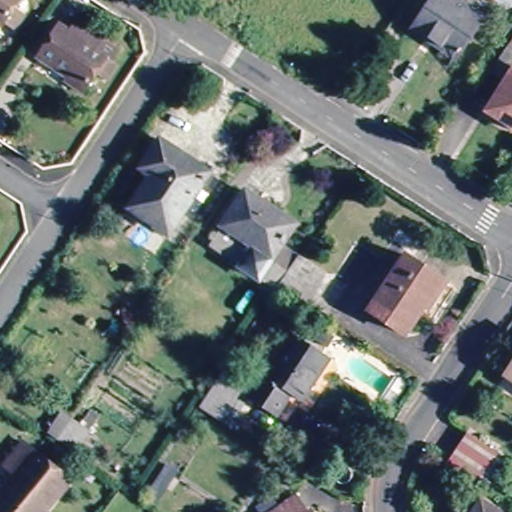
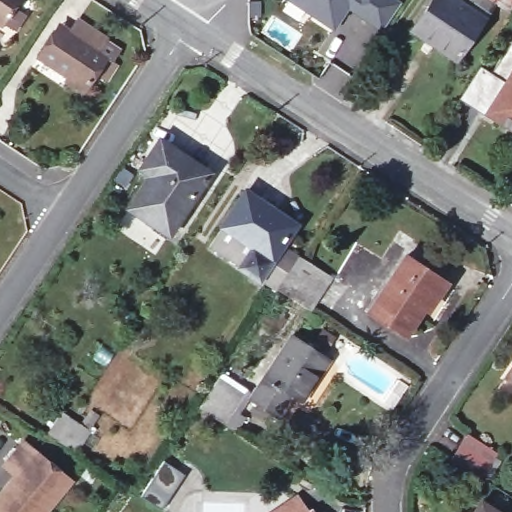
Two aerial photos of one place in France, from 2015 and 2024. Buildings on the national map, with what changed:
unchanged [(16,8),(5,24),(0,21),(0,0),(9,0),(7,2),(16,8)]
new [(381,30),(349,9),(332,31),(285,0),(398,0),(402,2),(381,30)]
unchanged [(455,60),(410,27),(427,0),(495,0),(487,9),(455,60)]
unchanged [(97,75),(92,70),(87,67),(74,84),(56,71),(60,66),(44,54),(41,58),(27,49),(45,26),(52,17),(67,28),(75,16),(97,33),(90,43),(104,53),(110,57),(97,75)]
unchanged [(492,100),(507,74),(492,64),(511,34),(512,35),(512,114),(492,100)]
unchanged [(215,177),(177,229),(162,218),(154,229),(132,213),(156,179),(146,171),(166,142),(215,177)]
unchanged [(292,217),(269,251),(249,238),(220,218),(242,184),(292,217)]
unchanged [(249,238),(269,251),(292,217),(300,223),(263,279),(234,261),(249,238)]
unchanged [(442,277),(405,333),(369,309),(406,253),(442,277)]
unchanged [(302,257),(331,276),(309,310),(279,290),(302,257)]
unchanged [(316,336),(322,326),(332,333),(326,343),(316,336)]
unchanged [(291,327),(330,354),(297,403),(286,396),(275,414),(246,394),(291,327)]
unchanged [(508,378),(512,373),(512,381),(508,378)]
unchanged [(238,436),(223,426),(197,409),(219,376),(246,394),(236,408),(251,418),(238,436)]
unchanged [(466,429),(501,451),(482,480),(447,459),(466,429)]
unchanged [(0,508),(0,498),(20,472),(11,465),(27,444),(73,478),(48,512),(6,512),(0,508)]
unchanged [(308,512),(272,512),(299,496),(308,512)]
unchanged [(492,512),(471,512),(477,502),(492,512)]

